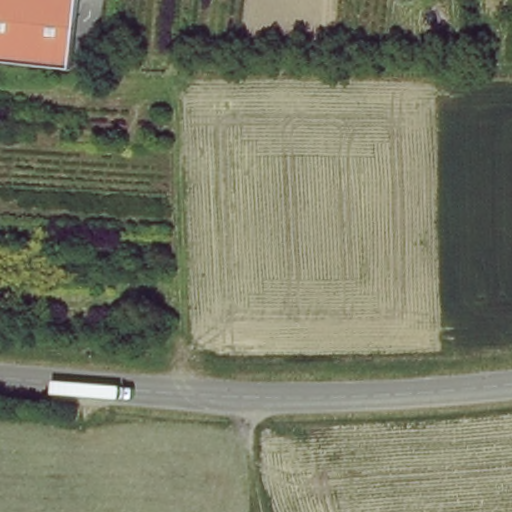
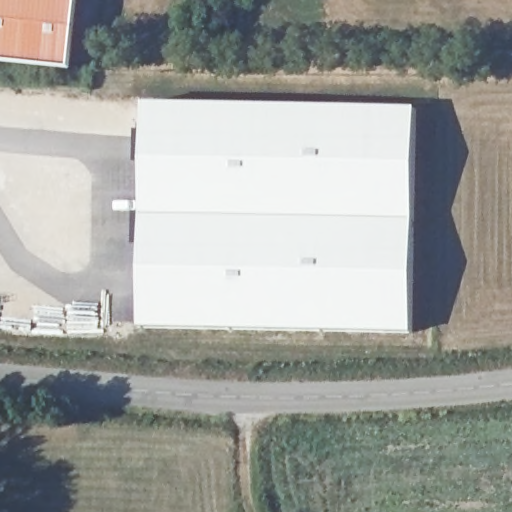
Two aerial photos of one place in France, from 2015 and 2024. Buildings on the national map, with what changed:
unchanged [(76,72),(0,64),(0,0),(84,0),(76,72)]
new [(143,102),(415,108),(410,334),(139,328),(143,102)]

